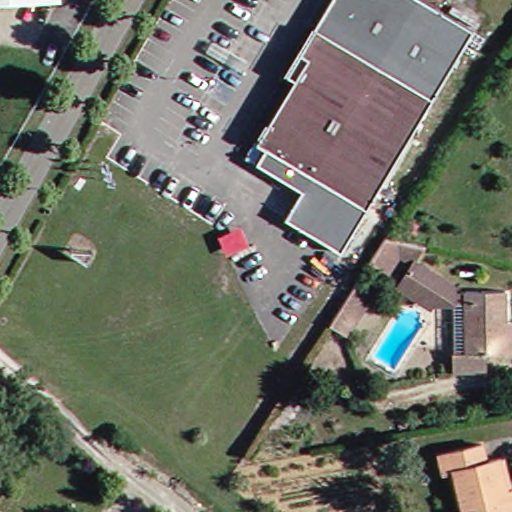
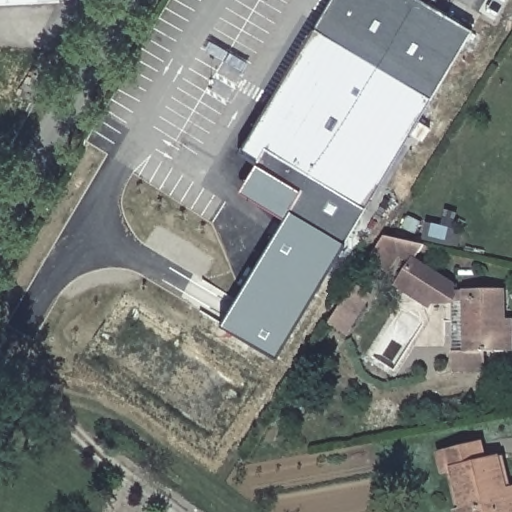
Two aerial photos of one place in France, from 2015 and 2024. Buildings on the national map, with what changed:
unchanged [(0,4),(0,0),(53,0),(54,1),(0,4)]
unchanged [(289,74),(282,69),(323,0),(426,0),(469,27),(332,250),(277,215),(295,189),(250,158),(298,80),(289,74)]
unchanged [(240,152),(289,74),(298,80),(250,158),(240,152)]
new [(295,189),(277,215),(239,189),(256,162),(295,189)]
new [(283,219),(332,250),(271,353),(220,323),(283,219)]
unchanged [(384,233),(427,244),(418,264),(444,280),(448,284),(443,290),(432,297),(401,277),(409,260),(394,248),(384,267),(369,258),(384,233)]
new [(414,286),(432,297),(443,290),(448,284),(458,289),(456,297),(447,296),(447,305),(432,306),(429,309),(394,287),(401,277),(414,286)]
unchanged [(349,281),(364,290),(340,330),(327,321),(330,312),(349,281)]
unchanged [(447,296),(463,297),(461,363),(445,361),(447,296)]
unchanged [(509,363),(495,363),(478,362),(478,384),(446,382),(445,361),(461,363),(463,297),(499,298),(498,326),(509,328),(509,363)]
unchanged [(453,512),(446,473),(433,473),(429,455),(451,450),(475,445),(476,462),(492,457),(501,456),(508,481),(512,481),(512,512),(451,512),(453,512)]

